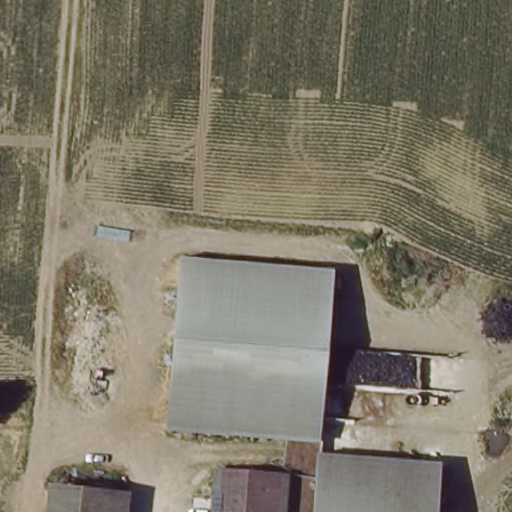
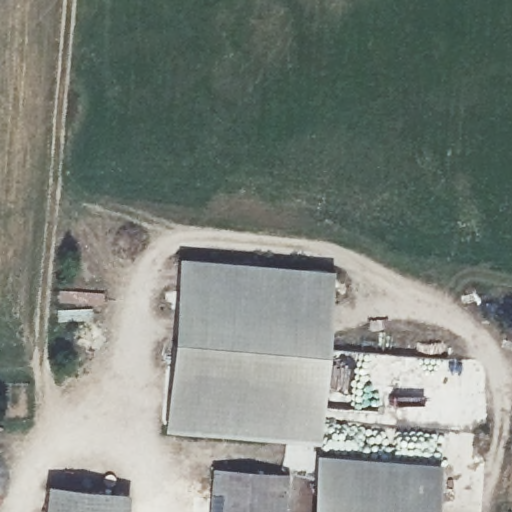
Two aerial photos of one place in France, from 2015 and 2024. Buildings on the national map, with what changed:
unchanged [(323,443),(166,432),(180,256),(336,269),(323,443)]
unchanged [(312,512),(317,453),(442,461),(438,512),(312,512)]
unchanged [(290,473),(288,512),(212,512),(215,470),(290,473)]
unchanged [(45,512),(47,486),(130,492),(127,512),(45,512)]

